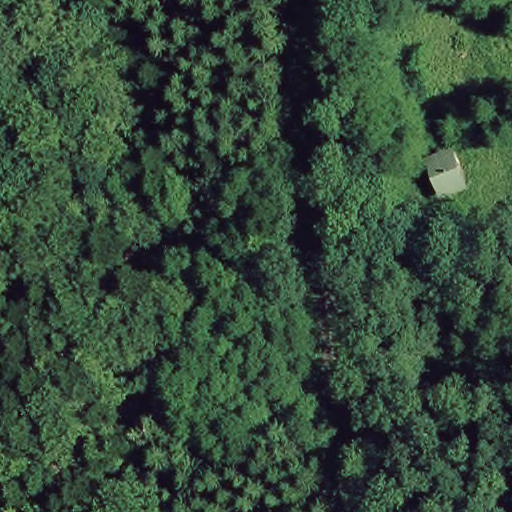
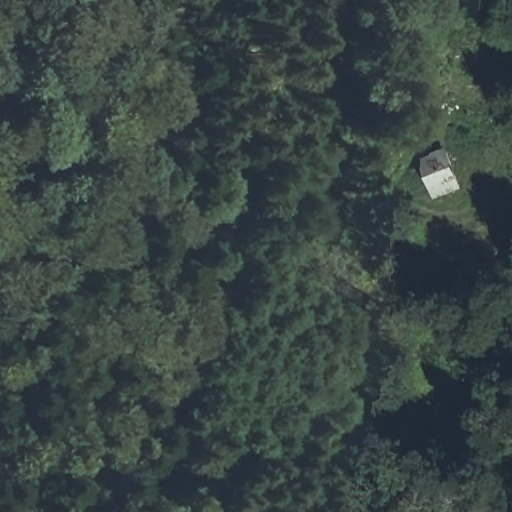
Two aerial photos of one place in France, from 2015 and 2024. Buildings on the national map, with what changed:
unchanged [(416,164),(447,155),(458,192),(427,201),(416,164)]

